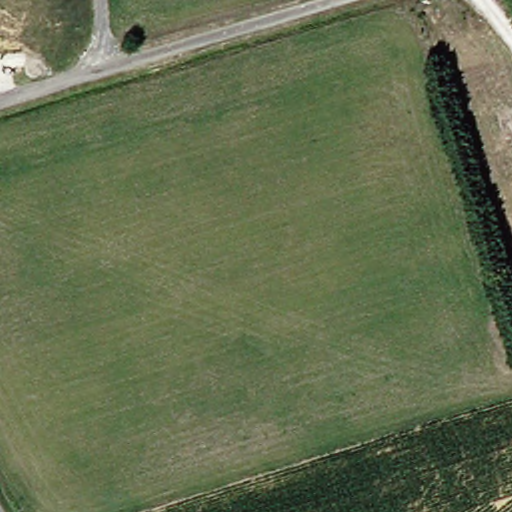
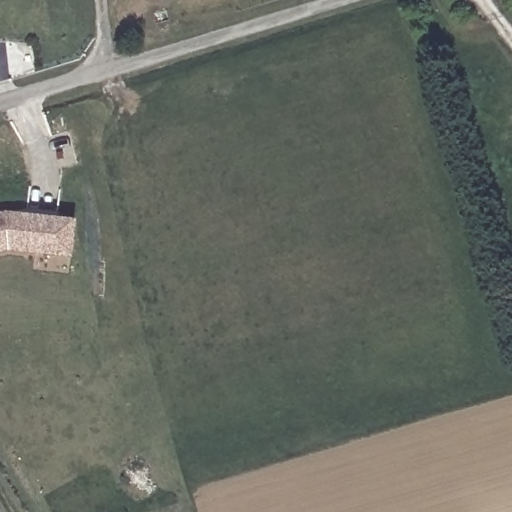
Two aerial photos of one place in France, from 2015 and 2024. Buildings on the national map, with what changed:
new [(28,220),(59,222),(76,224),(72,259),(55,256),(10,251),(0,254),(0,219),(8,216),(28,220)]

